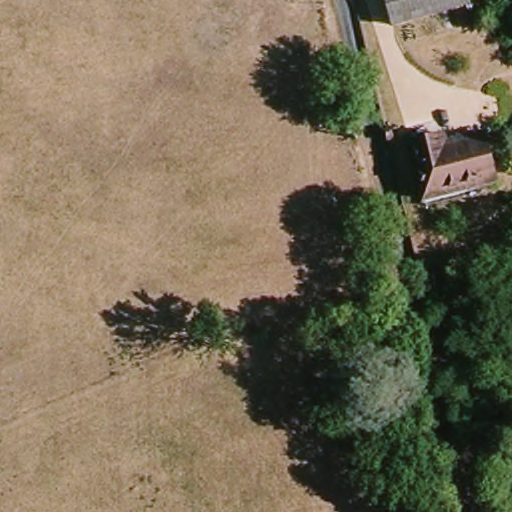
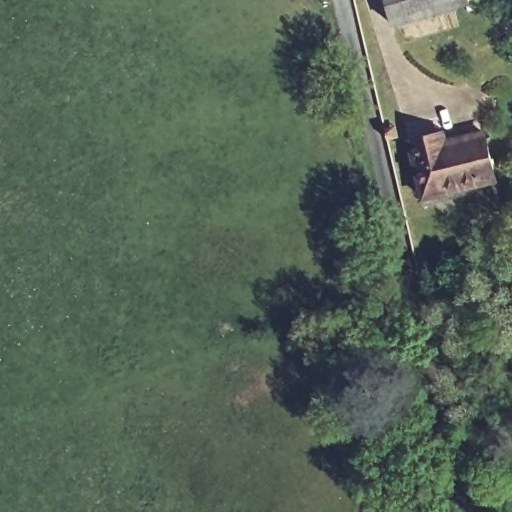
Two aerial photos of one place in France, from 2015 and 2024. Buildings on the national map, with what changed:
unchanged [(393,19),(390,0),(468,0),(470,7),(393,19)]
unchanged [(450,142),(490,136),(497,181),(424,192),(415,136),(447,131),(450,142)]

